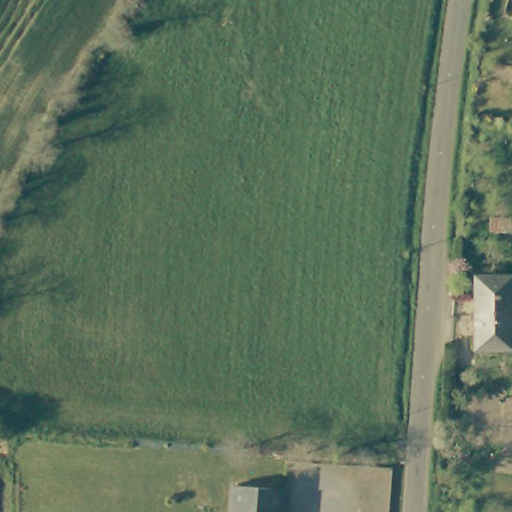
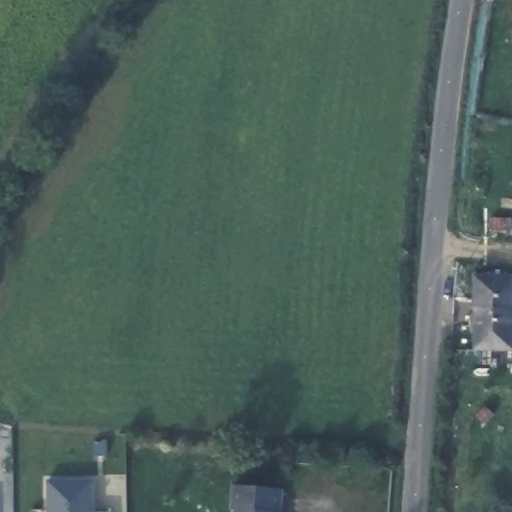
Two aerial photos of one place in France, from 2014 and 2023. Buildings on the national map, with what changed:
unchanged [(512,277),(512,351),(478,351),(477,278),(512,277)]
new [(48,481),(94,481),(94,512),(49,512),(48,481)]
unchanged [(227,507),(229,483),(274,486),(272,512),(231,512),(232,507),(227,507)]

